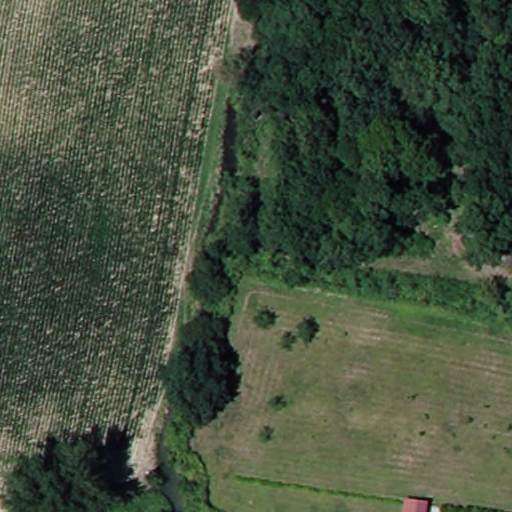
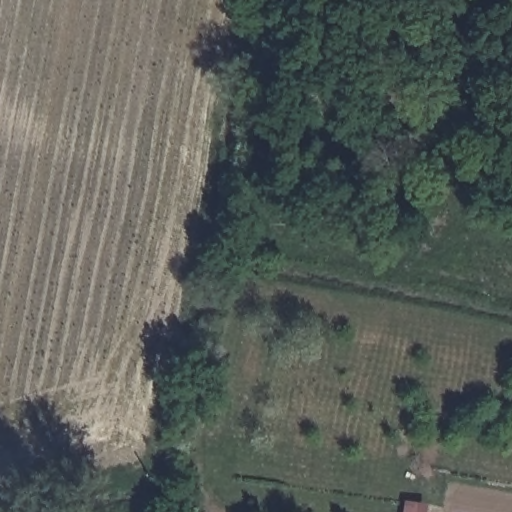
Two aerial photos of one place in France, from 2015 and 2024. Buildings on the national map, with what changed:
unchanged [(430,512),(404,512),(406,500),(431,505),(430,512)]

